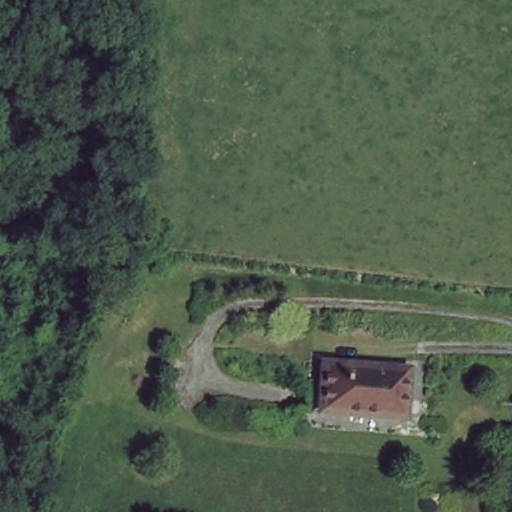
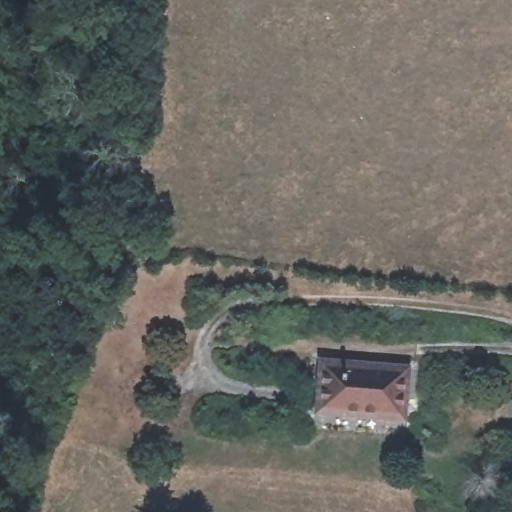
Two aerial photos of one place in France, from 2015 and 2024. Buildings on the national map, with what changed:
unchanged [(408,420),(324,413),(329,366),(413,373),(408,420)]

